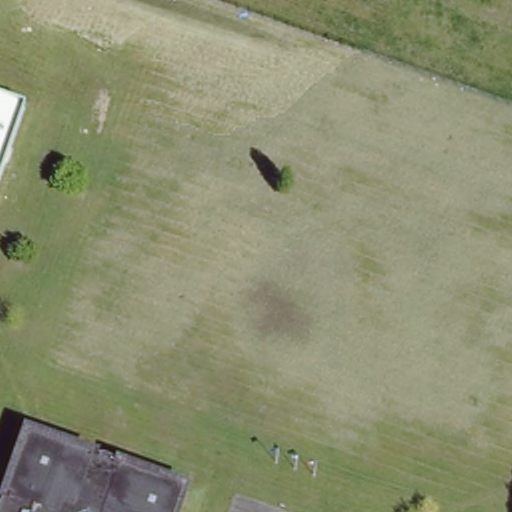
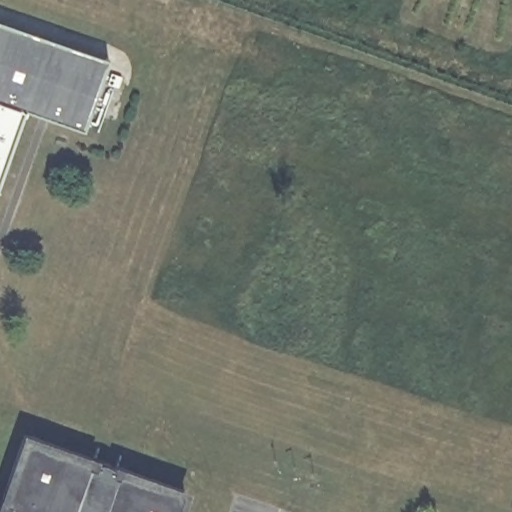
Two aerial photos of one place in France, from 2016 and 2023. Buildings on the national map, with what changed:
new [(12,104),(0,100),(0,20),(107,57),(83,129),(25,108),(12,104)]
unchanged [(0,180),(0,100),(12,104),(25,108),(20,122),(0,180)]
unchanged [(24,436),(185,491),(178,512),(0,512),(0,506),(24,436)]

